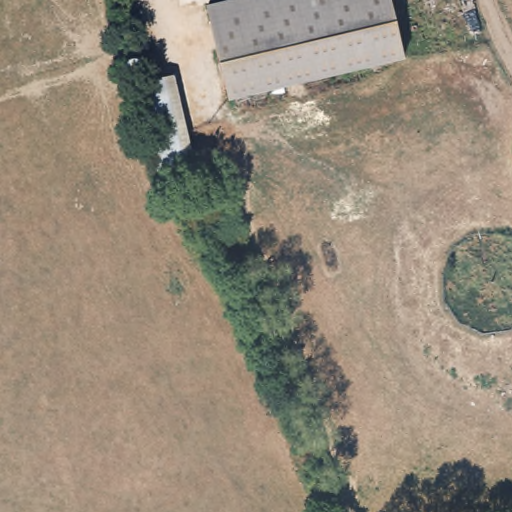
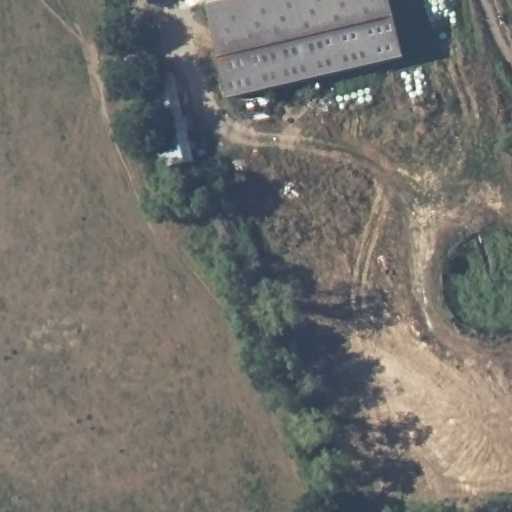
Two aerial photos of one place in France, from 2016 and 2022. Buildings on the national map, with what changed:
unchanged [(291,0),(387,0),(399,52),(225,91),(210,19),(291,0)]
unchanged [(174,76),(196,162),(157,173),(133,76),(154,71),(157,81),(174,76)]

